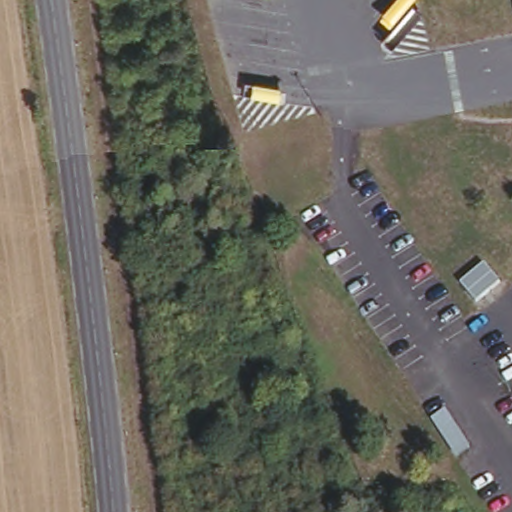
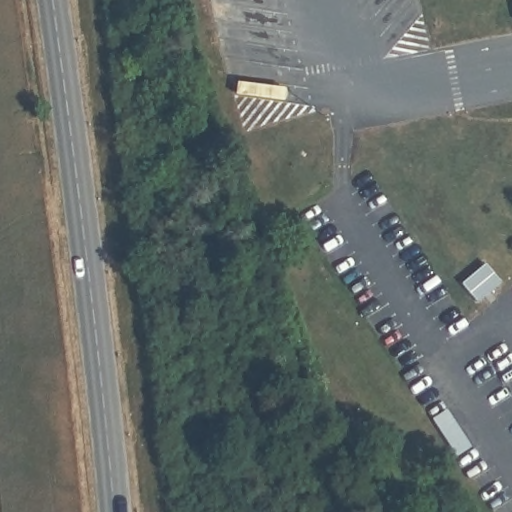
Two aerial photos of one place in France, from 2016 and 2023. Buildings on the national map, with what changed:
unchanged [(503,286),(478,305),(462,286),(486,263),(503,286)]
unchanged [(472,447),(455,457),(431,416),(449,406),(472,447)]

